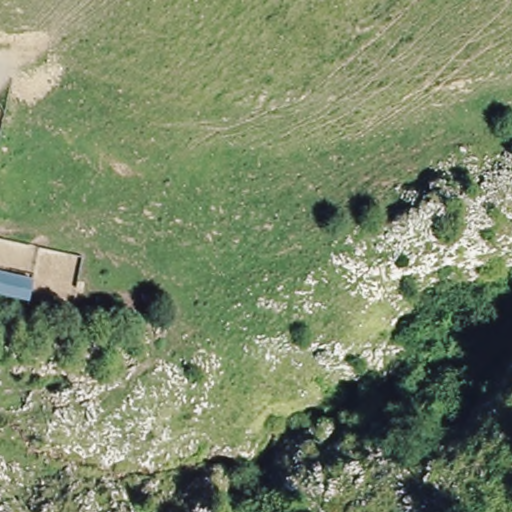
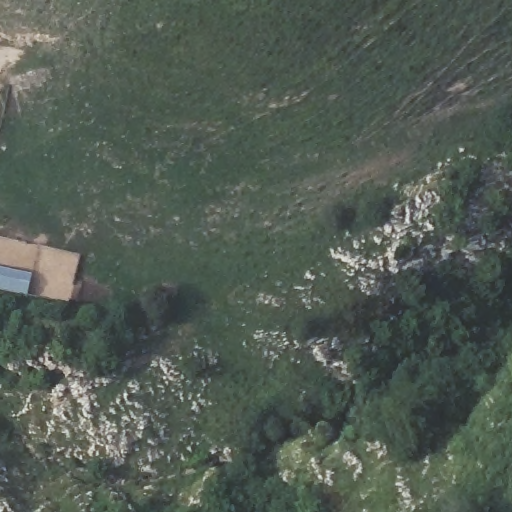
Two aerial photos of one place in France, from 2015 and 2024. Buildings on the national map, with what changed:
unchanged [(29,299),(0,293),(0,272),(32,278),(29,299)]

